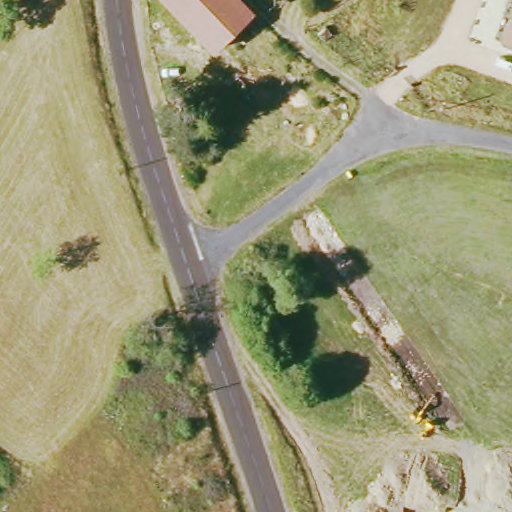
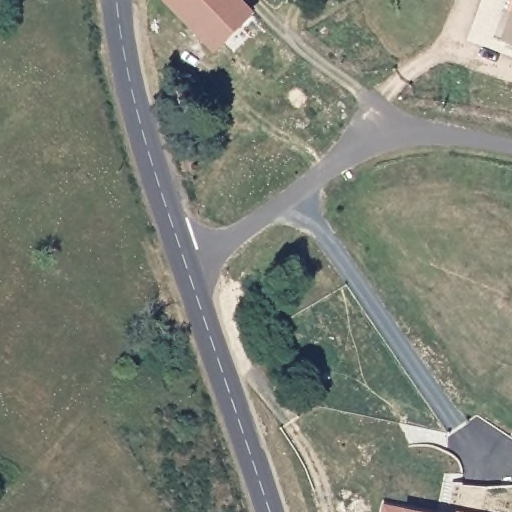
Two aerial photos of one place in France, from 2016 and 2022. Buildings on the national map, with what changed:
unchanged [(255,18),(216,56),(162,0),(238,0),(255,18)]
unchanged [(512,17),(512,47),(503,44),(512,17)]
new [(405,508),(421,512),(381,512),(383,504),(405,508)]
new [(448,512),(449,510),(461,512),(448,512)]

